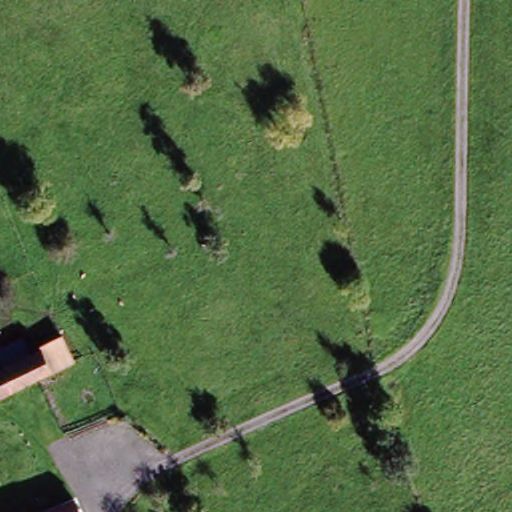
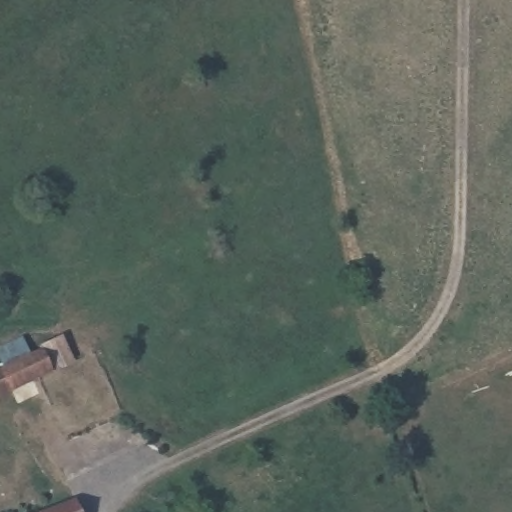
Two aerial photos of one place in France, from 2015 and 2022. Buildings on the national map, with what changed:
unchanged [(60,331),(75,364),(0,400),(0,362),(60,331)]
unchanged [(61,512),(37,512),(56,502),(61,512)]

